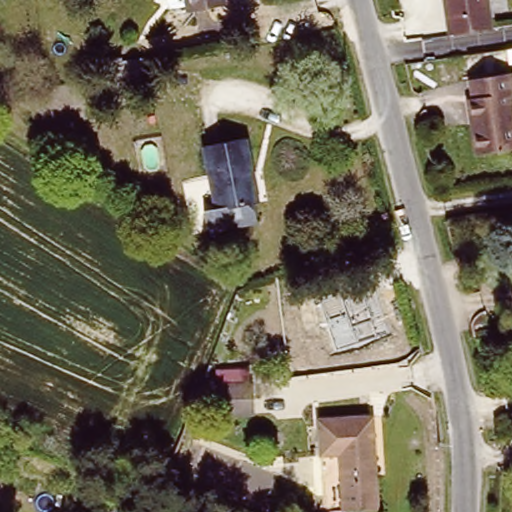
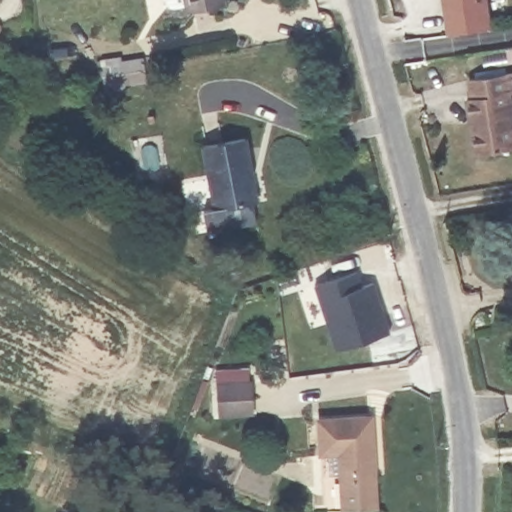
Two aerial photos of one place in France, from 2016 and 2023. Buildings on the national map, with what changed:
unchanged [(172,0),(167,1),(167,0),(172,0)]
unchanged [(188,0),(222,0),(189,7),(188,0)]
unchanged [(446,0),(489,0),(492,26),(448,32),(446,0)]
new [(132,66),(135,79),(115,82),(117,90),(102,92),(98,73),(82,76),(67,79),(63,60),(78,57),(80,66),(100,62),(102,72),(113,70),(132,66)]
unchanged [(477,95),(474,75),(512,69),(512,147),(480,152),(472,95),(477,95)]
unchanged [(252,201),(255,224),(206,231),(202,207),(216,206),(207,143),(248,137),(255,180),(258,200),(252,201)]
new [(353,272),(357,287),(370,283),(386,333),(332,351),(311,286),(353,272)]
unchanged [(213,384),(248,382),(249,412),(215,414),(213,384)]
unchanged [(317,420),(371,417),(376,506),(340,507),(336,452),(319,452),(317,420)]

